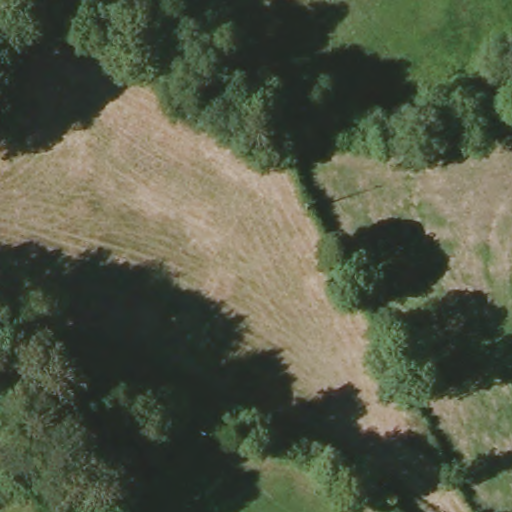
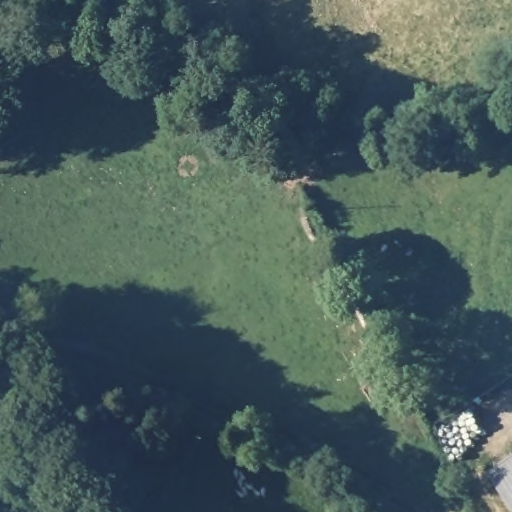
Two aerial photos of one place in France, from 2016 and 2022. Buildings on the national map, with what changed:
new [(488,473),(512,457),(512,509),(488,473)]

